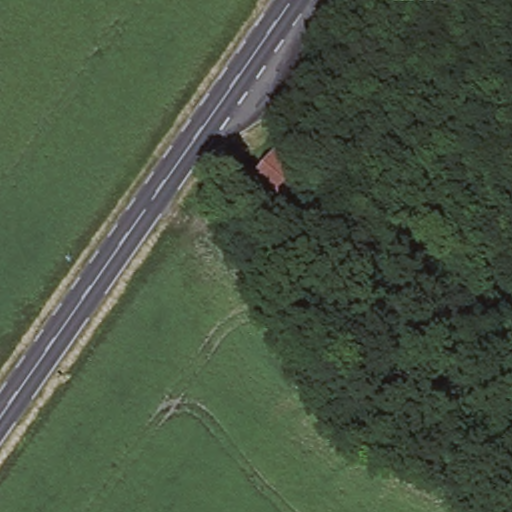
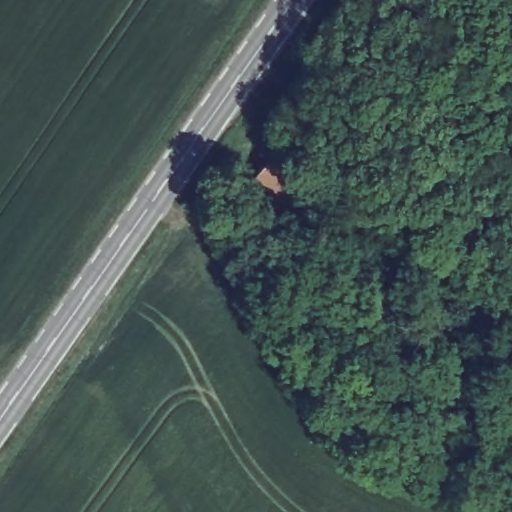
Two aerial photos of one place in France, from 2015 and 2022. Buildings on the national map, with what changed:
unchanged [(288,192),(273,192),(252,176),(271,152),(291,167),(298,180),(288,192)]

